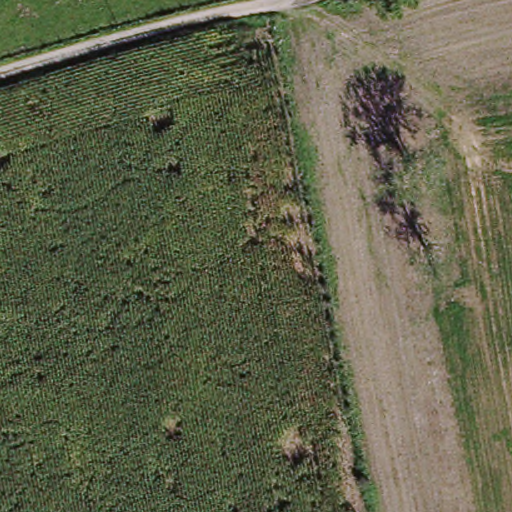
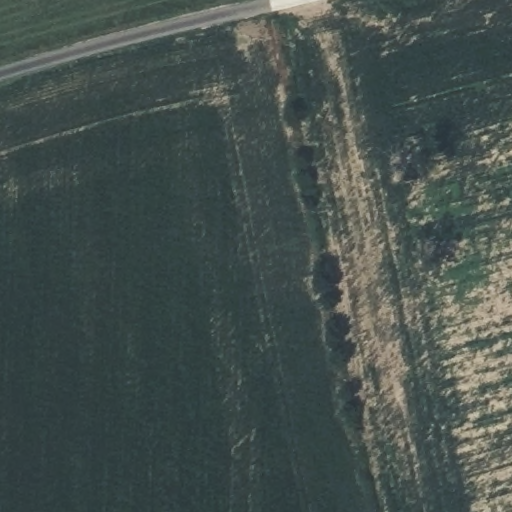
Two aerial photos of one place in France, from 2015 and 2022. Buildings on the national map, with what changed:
[]

